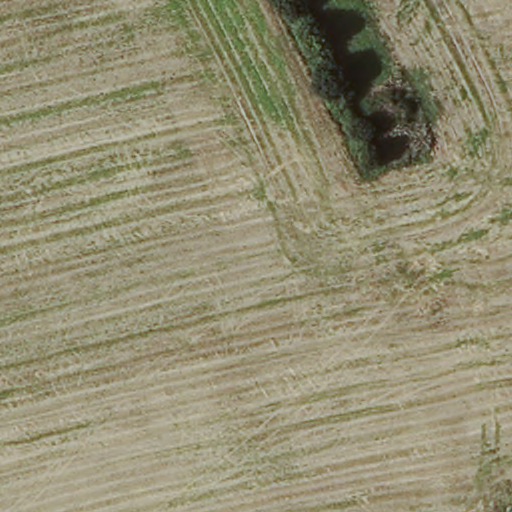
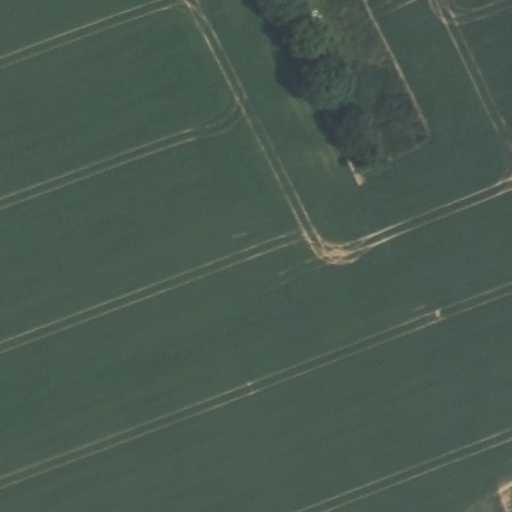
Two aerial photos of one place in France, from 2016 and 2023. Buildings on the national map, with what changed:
[]

